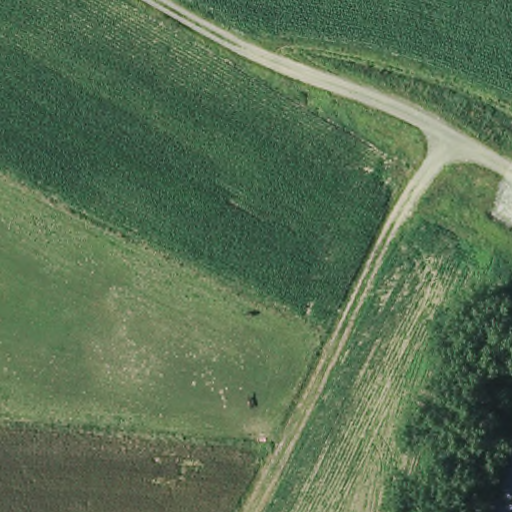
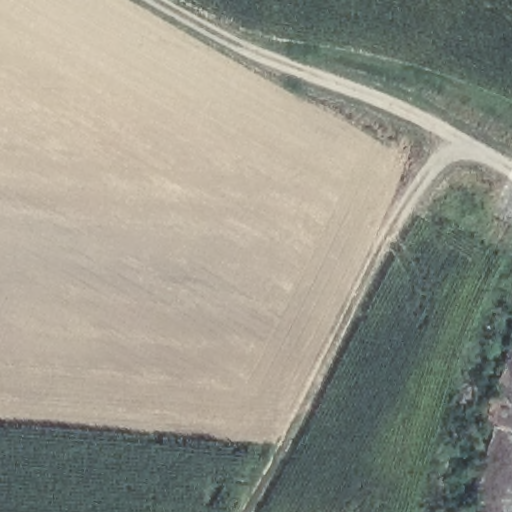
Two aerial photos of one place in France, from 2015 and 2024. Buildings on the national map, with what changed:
unchanged [(512,431),(512,512),(482,512),(502,460),(512,431)]

